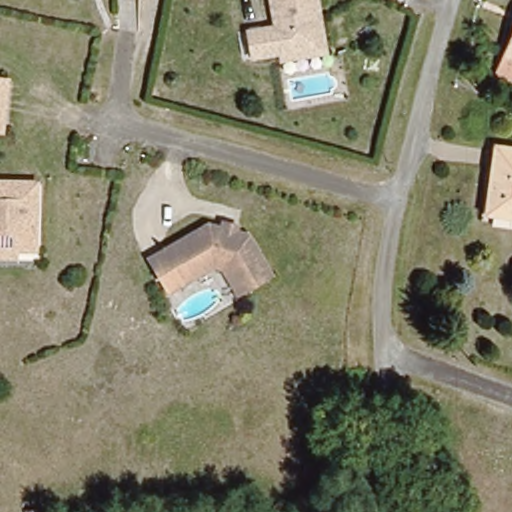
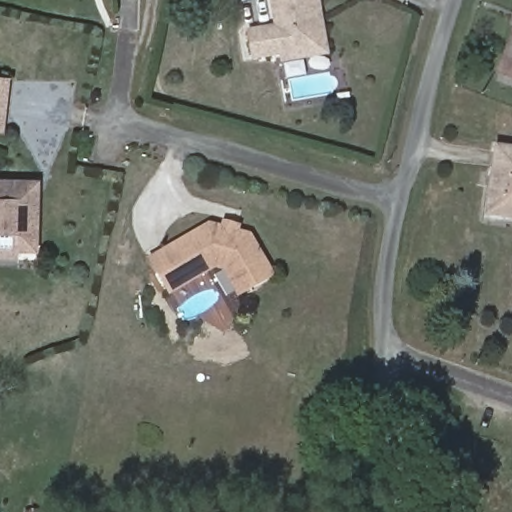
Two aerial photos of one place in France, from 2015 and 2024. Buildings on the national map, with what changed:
unchanged [(313,7),(318,32),(310,46),(259,56),(254,29),(281,25),(276,0),(320,0),(321,5),(313,7)]
unchanged [(506,79),(512,58),(512,82),(506,79)]
unchanged [(0,125),(0,78),(5,79),(0,125)]
unchanged [(497,219),(499,196),(489,195),(492,156),(512,158),(512,221),(497,219)]
unchanged [(0,181),(36,182),(35,249),(15,249),(15,255),(0,255),(0,181)]
unchanged [(272,274),(237,295),(224,269),(215,267),(170,294),(149,260),(210,225),(222,228),(224,221),(240,226),(237,232),(251,235),(272,274)]

